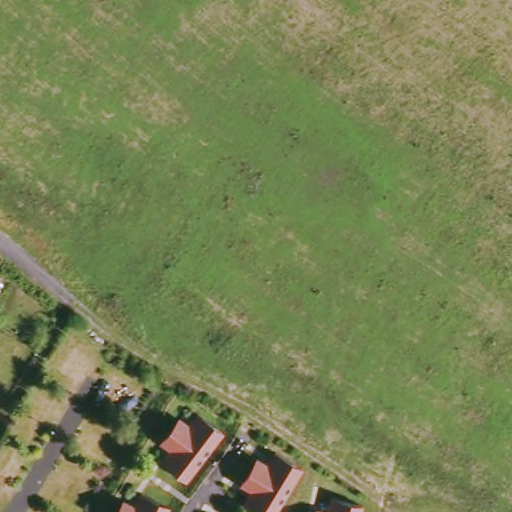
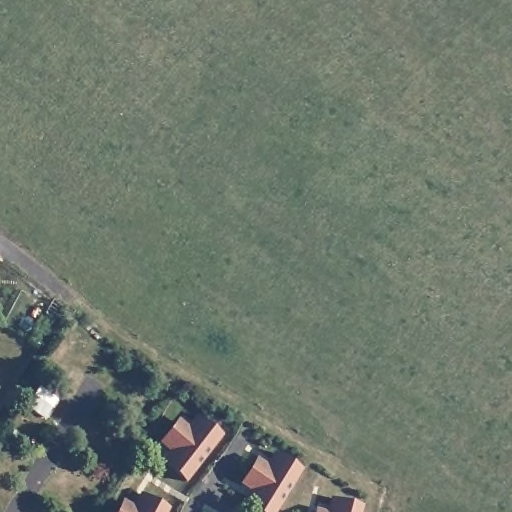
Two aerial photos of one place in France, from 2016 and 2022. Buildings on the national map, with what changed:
unchanged [(0,255),(5,258),(0,264),(0,255)]
unchanged [(189,488),(169,474),(181,456),(164,444),(181,416),(191,423),(199,412),(227,437),(189,488)]
unchanged [(251,512),(247,510),(256,493),(240,486),(223,476),(241,453),(255,461),(259,454),(271,462),(278,450),(310,471),(286,512),(251,512)]
unchanged [(314,512),(316,509),(307,505),(333,473),(341,479),(334,497),(367,505),(366,512),(314,512)]
unchanged [(118,512),(123,499),(136,505),(143,491),(174,510),(173,512),(118,512)]

